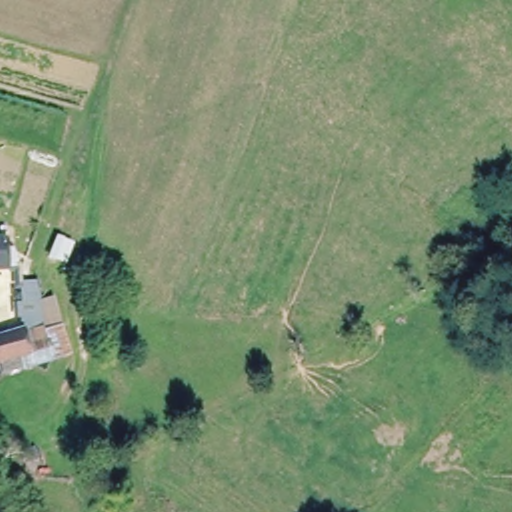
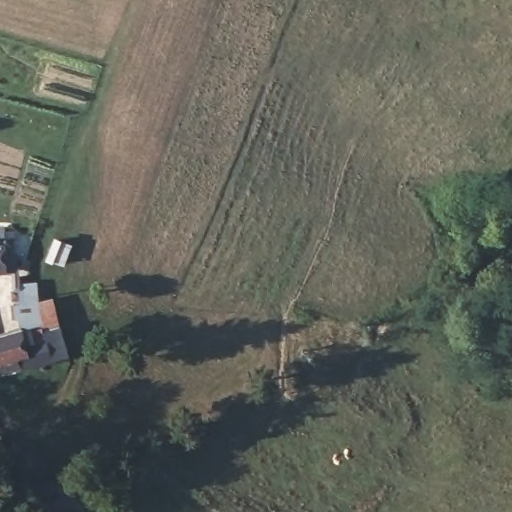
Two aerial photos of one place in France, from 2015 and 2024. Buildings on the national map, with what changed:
unchanged [(7,243),(7,277),(0,277),(0,244),(7,243)]
unchanged [(15,322),(7,297),(16,295),(17,303),(20,302),(33,299),(38,315),(23,319),(15,322)]
unchanged [(25,330),(31,347),(49,342),(55,358),(6,373),(1,365),(0,365),(0,341),(25,330)]

